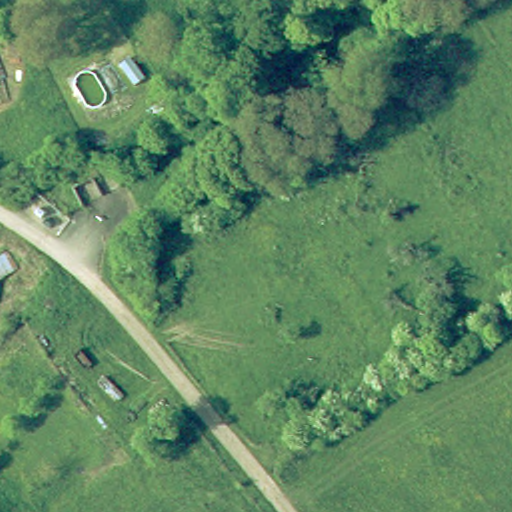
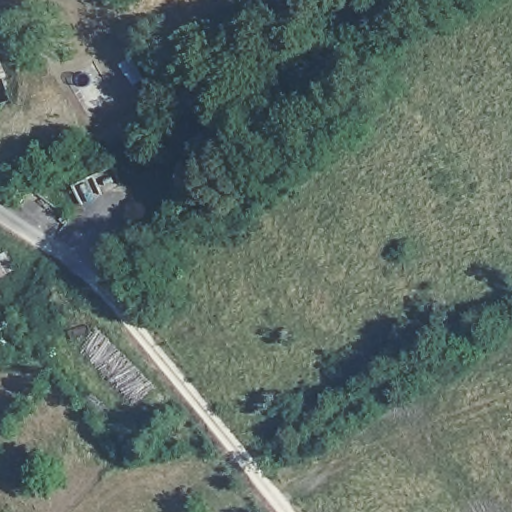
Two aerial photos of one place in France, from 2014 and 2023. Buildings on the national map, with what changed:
unchanged [(0,77),(0,65),(4,76),(0,77)]

